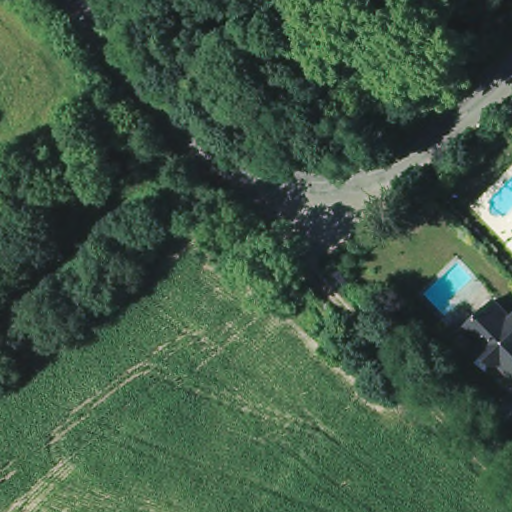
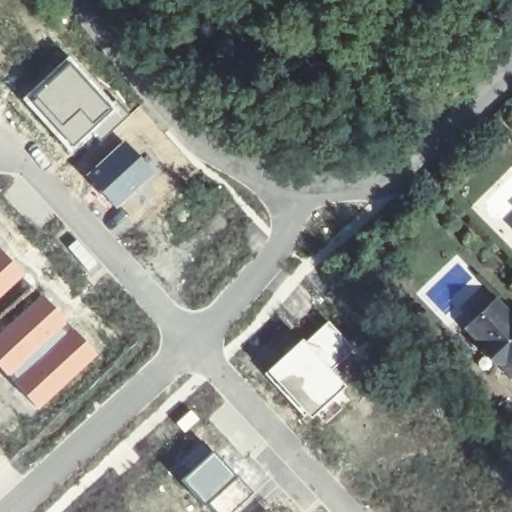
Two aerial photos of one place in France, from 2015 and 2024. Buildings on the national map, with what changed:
new [(67,56),(115,110),(70,151),(20,99),(67,56)]
new [(122,140),(155,172),(115,209),(83,175),(122,140)]
new [(22,175),(57,215),(39,232),(2,195),(22,175)]
new [(23,275),(0,296),(0,250),(23,275)]
new [(40,293),(97,355),(37,410),(0,368),(0,329),(40,293)]
unchanged [(508,318),(512,314),(512,379),(497,363),(490,363),(480,352),(480,345),(462,327),(490,299),(508,318)]
new [(328,320),(355,350),(333,370),(303,340),(328,320)]
new [(301,338),(303,340),(333,370),(346,385),(308,420),(263,372),(301,338)]
new [(211,451),(235,475),(204,505),(180,479),(211,451)]
new [(235,475),(254,494),(234,512),(212,512),(204,505),(235,475)]
new [(265,510),(267,512),(263,512),(265,510)]

